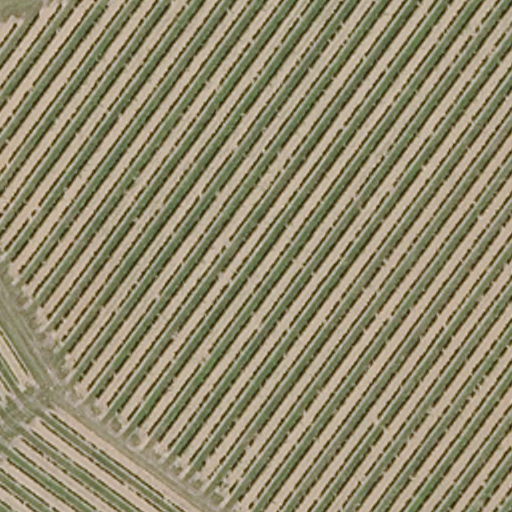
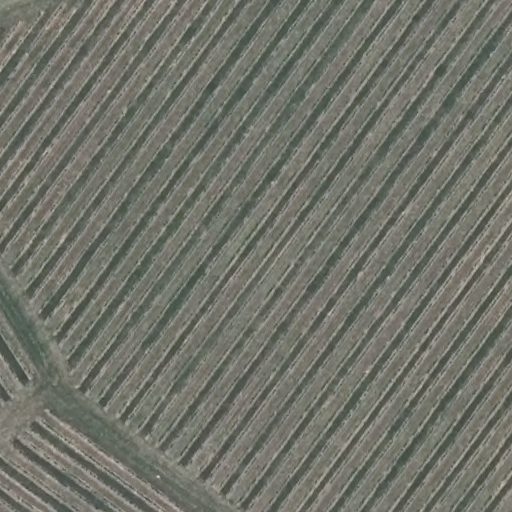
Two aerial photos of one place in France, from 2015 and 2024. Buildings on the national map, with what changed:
[]

